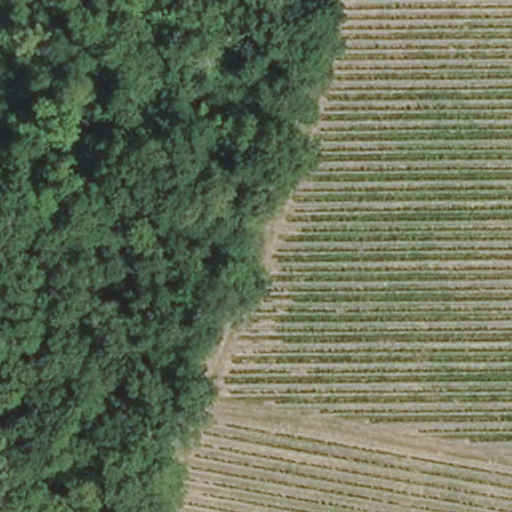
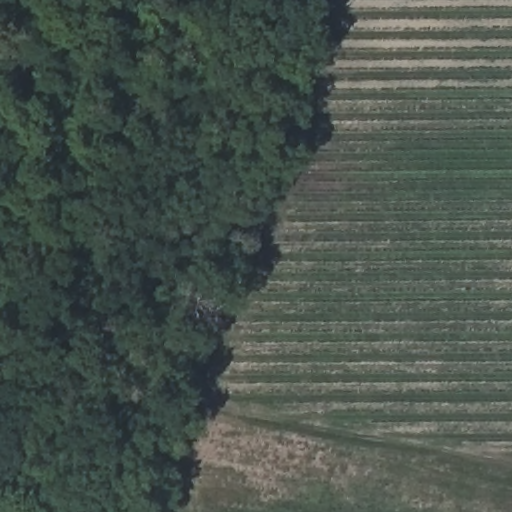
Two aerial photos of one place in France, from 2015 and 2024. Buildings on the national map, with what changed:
[]

